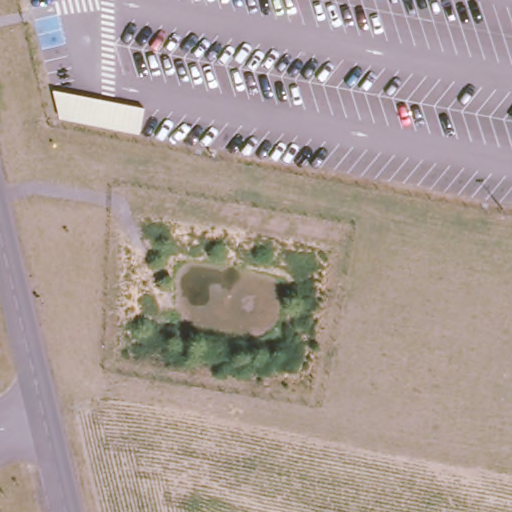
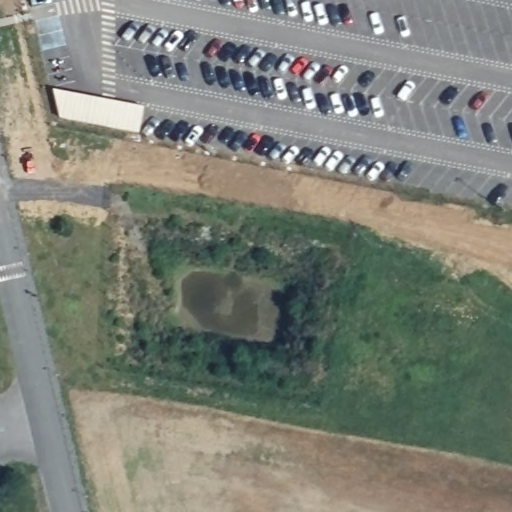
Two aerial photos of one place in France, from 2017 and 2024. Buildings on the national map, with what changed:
unchanged [(57,120),(51,92),(140,110),(137,134),(57,120)]

